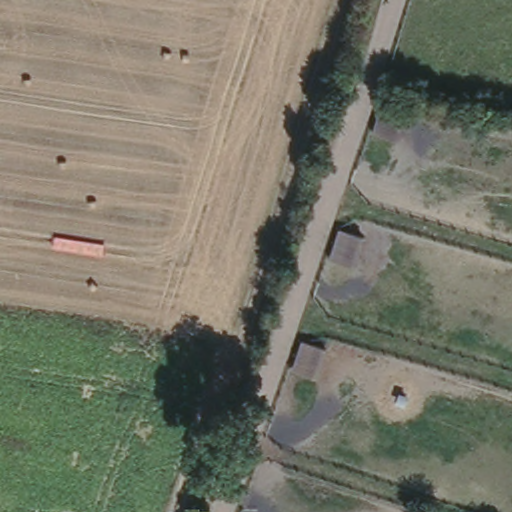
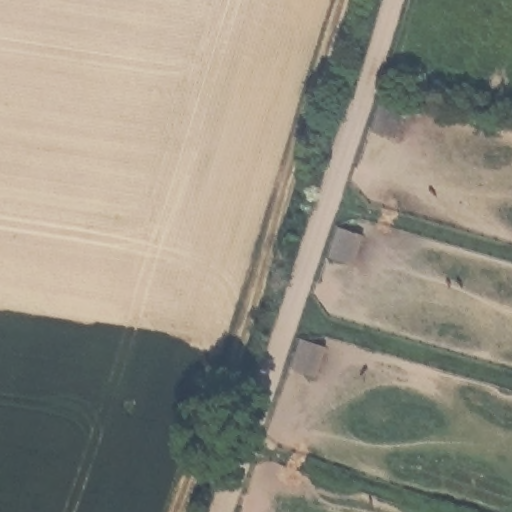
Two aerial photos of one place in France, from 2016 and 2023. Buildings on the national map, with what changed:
unchanged [(381,95),(401,104),(392,132),(371,127),(381,95)]
unchanged [(336,219),(360,229),(350,258),(325,252),(336,219)]
unchanged [(296,335),(322,342),(312,371),(289,367),(296,335)]

